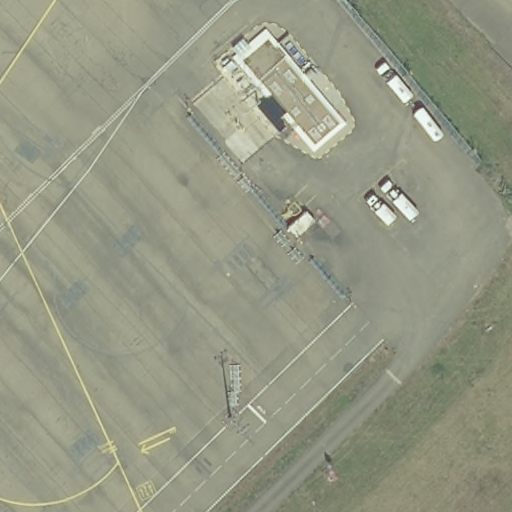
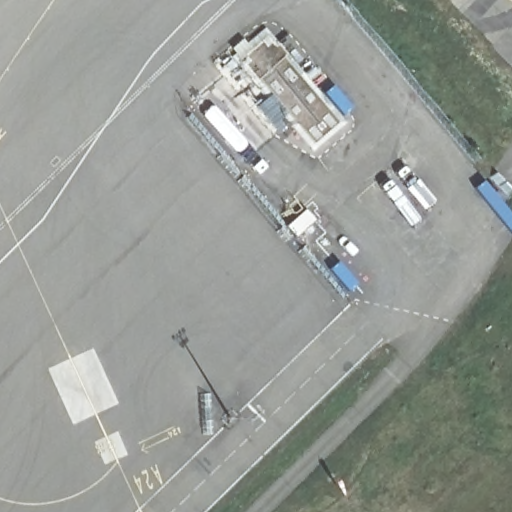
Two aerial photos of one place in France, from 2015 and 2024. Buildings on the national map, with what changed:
unchanged [(343,121),(309,146),(235,56),(267,31),(343,121)]

